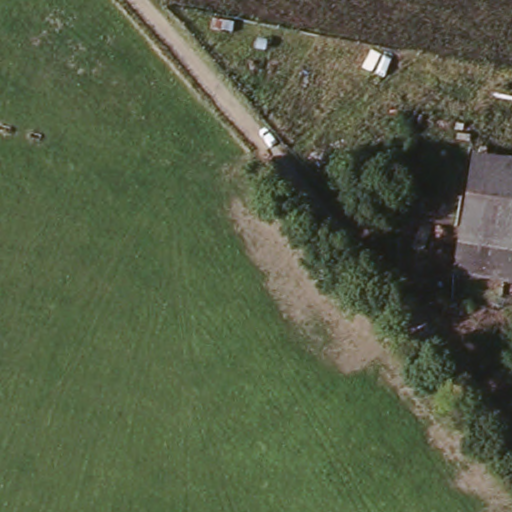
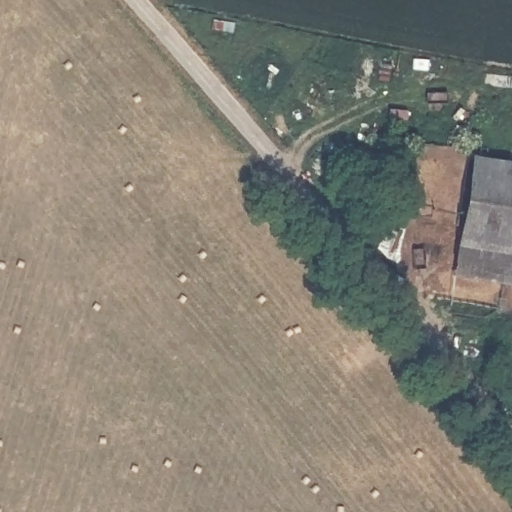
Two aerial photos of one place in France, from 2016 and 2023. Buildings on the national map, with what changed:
unchanged [(452,280),(470,158),(512,165),(512,289),(452,280)]

